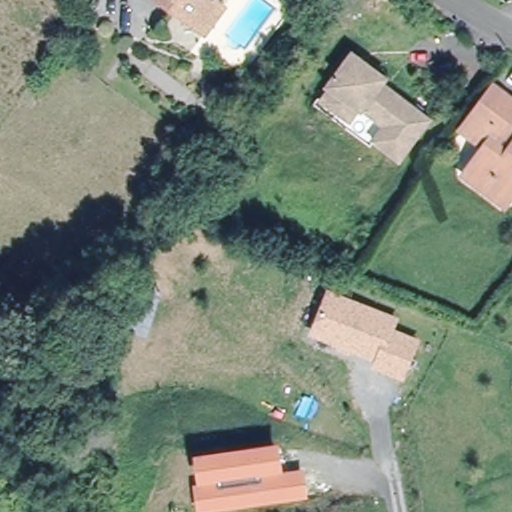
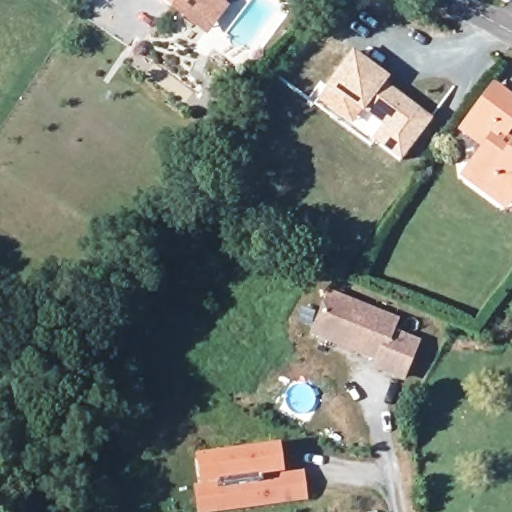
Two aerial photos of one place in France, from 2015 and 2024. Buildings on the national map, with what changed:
unchanged [(194,26),(159,0),(213,0),(211,3),(221,10),(204,34),(194,26)]
unchanged [(392,162),(366,141),(377,125),(356,110),(354,112),(320,86),(347,52),(380,78),(376,82),(384,89),(425,120),(413,135),(400,151),(392,162)]
unchanged [(467,157),(480,142),(456,125),(489,82),(512,100),(512,110),(503,122),(512,129),(512,180),(506,189),(496,200),(457,170),(467,157)]
unchanged [(362,146),(307,104),(320,86),(354,112),(356,110),(377,125),(366,141),(362,146)]
unchanged [(161,293),(148,336),(122,328),(136,285),(161,293)]
unchanged [(332,296),(398,322),(394,333),(420,344),(405,380),(378,369),(381,362),(316,336),(332,296)]
unchanged [(279,442),(283,470),(304,468),(310,499),(209,512),(197,512),(192,484),(197,482),(193,453),(279,442)]

